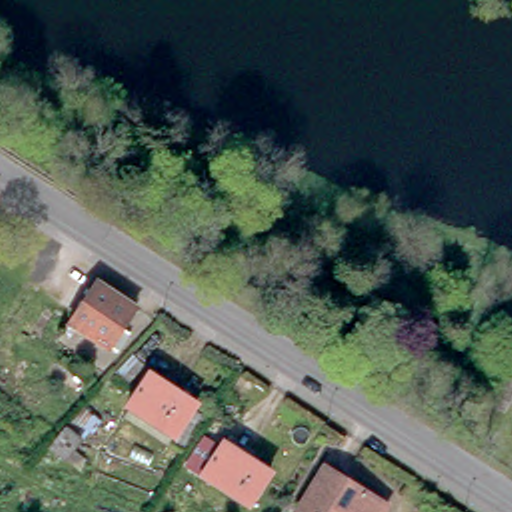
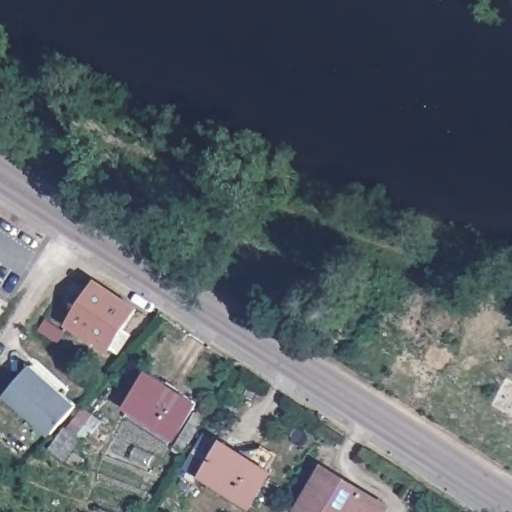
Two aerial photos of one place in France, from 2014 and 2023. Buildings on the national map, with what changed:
unchanged [(135,300),(121,322),(130,326),(118,344),(110,339),(108,344),(75,324),(70,333),(61,328),(93,274),(135,300)]
new [(77,404),(48,437),(2,397),(32,363),(77,404)]
unchanged [(193,405),(185,419),(178,414),(170,428),(130,403),(148,376),(193,405)]
unchanged [(195,472),(219,434),(276,469),(249,506),(195,472)]
unchanged [(288,512),(319,460),(390,502),(384,512),(289,512),(288,512)]

